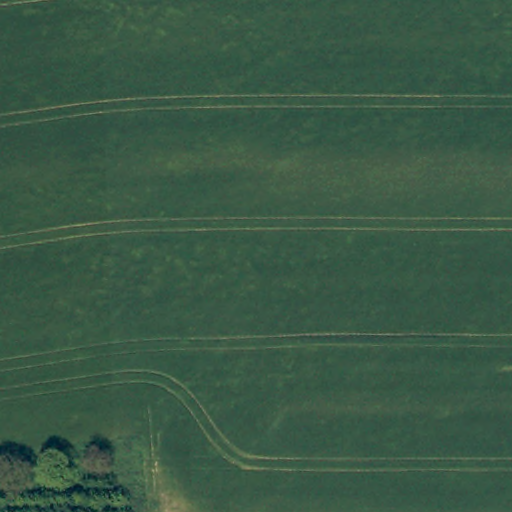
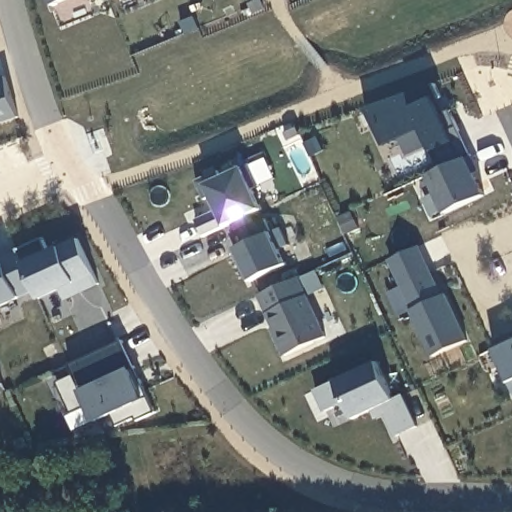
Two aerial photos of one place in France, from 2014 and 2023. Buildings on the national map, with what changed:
new [(67,0),(51,7),(49,0),(67,0)]
new [(18,118),(0,124),(0,78),(4,77),(18,118)]
new [(433,86),(445,114),(451,112),(479,172),(476,174),(486,196),(446,215),(429,177),(442,171),(421,130),(382,147),(366,109),(433,86)]
new [(196,220),(217,209),(211,197),(206,201),(197,182),(218,172),(223,178),(245,168),(251,166),(260,186),(253,188),(263,211),(225,227),(205,237),(196,220)]
new [(272,233),(282,229),(290,245),(280,251),(287,265),(251,281),(236,249),(243,246),(233,234),(266,220),(272,233)]
new [(43,238),(49,252),(60,248),(79,239),(95,275),(77,284),(39,301),(35,292),(16,251),(43,238)]
new [(410,311),(413,310),(389,260),(420,247),(440,288),(441,287),(446,295),(468,341),(431,357),(410,311)]
new [(0,308),(0,262),(3,261),(16,251),(35,292),(20,298),(0,308)]
new [(300,277),(326,337),(284,357),(258,297),(300,277)]
new [(75,375),(70,366),(121,342),(155,413),(137,421),(135,418),(117,426),(116,413),(94,423),(87,407),(73,413),(58,383),(75,375)]
new [(508,382),(492,351),(512,342),(512,390),(508,382)]
new [(394,398),(403,395),(418,427),(395,437),(384,417),(376,420),(371,411),(353,420),(346,405),(325,413),(313,390),(335,382),(377,362),(394,398)]
new [(0,385),(0,381),(1,384),(0,385)]

